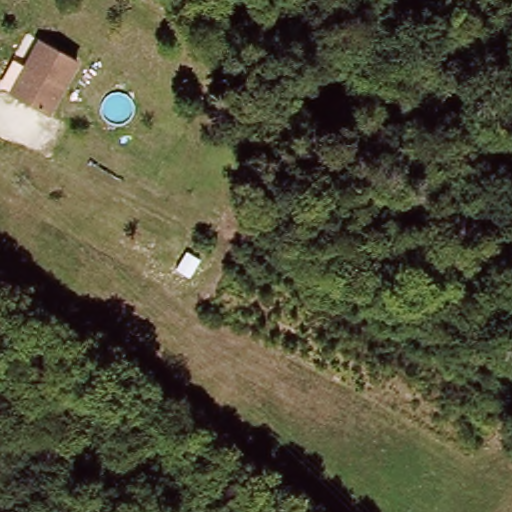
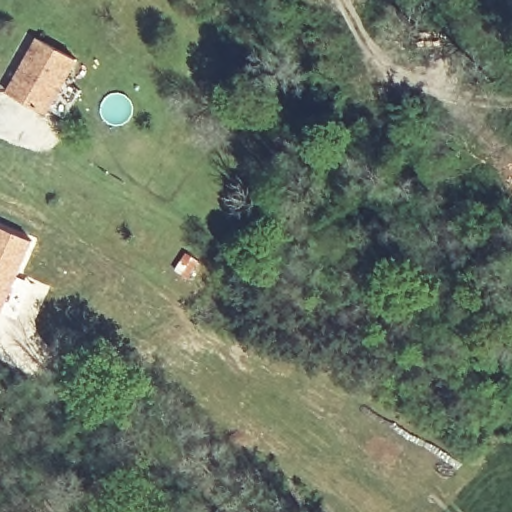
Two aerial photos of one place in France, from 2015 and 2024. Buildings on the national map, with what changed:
unchanged [(79,60),(47,113),(11,89),(44,38),(79,60)]
new [(35,240),(5,312),(0,310),(0,224),(35,240)]

